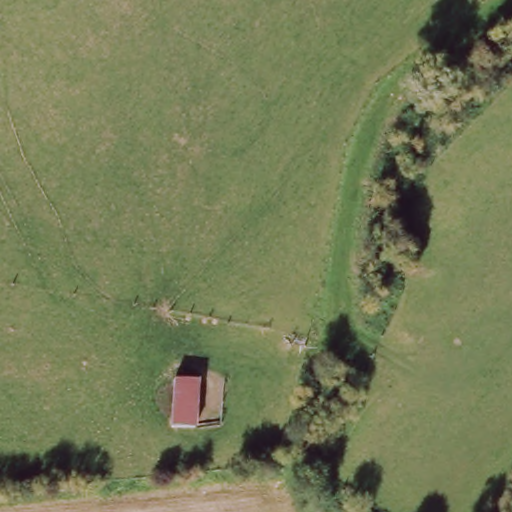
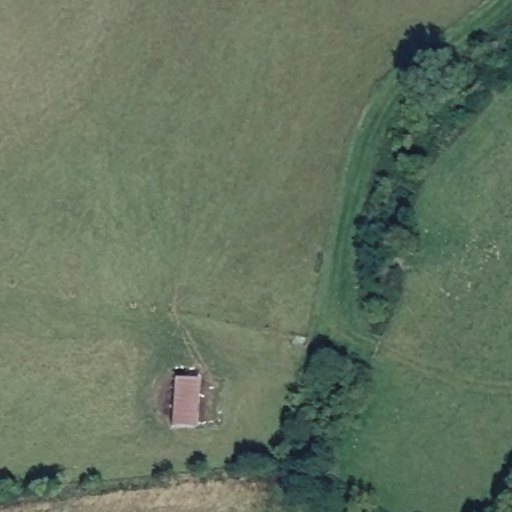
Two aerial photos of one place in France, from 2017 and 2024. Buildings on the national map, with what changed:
unchanged [(175,381),(202,383),(203,430),(174,429),(175,381)]

